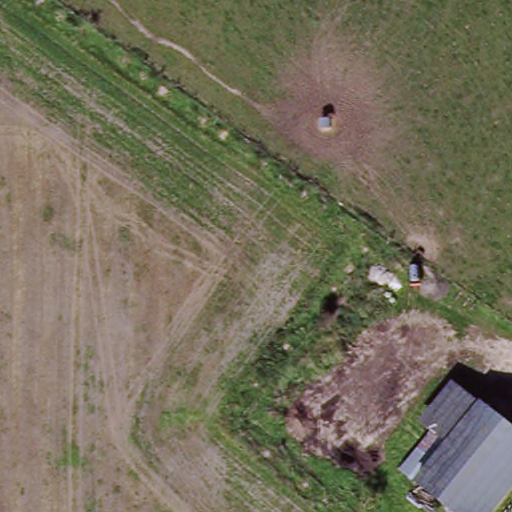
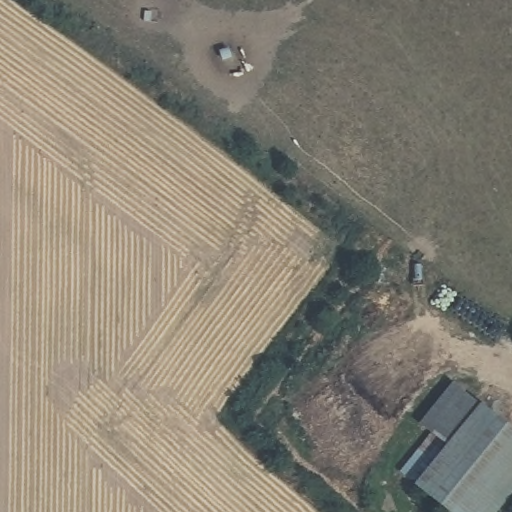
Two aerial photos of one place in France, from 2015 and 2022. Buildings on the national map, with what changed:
unchanged [(417,477),(402,471),(430,435),(420,427),(455,385),(480,402),(417,477)]
unchanged [(417,477),(480,402),(512,430),(512,492),(497,512),(441,512),(409,486),(417,477)]

